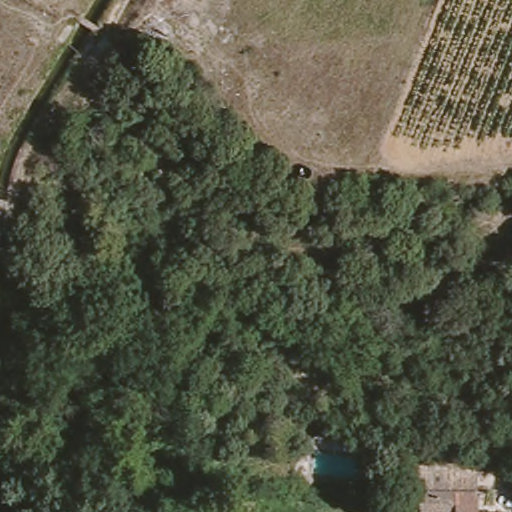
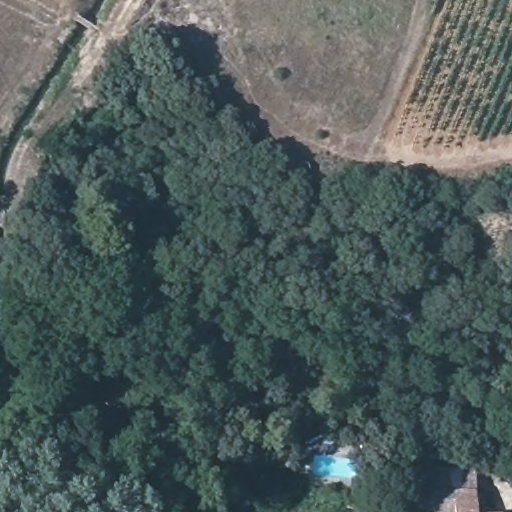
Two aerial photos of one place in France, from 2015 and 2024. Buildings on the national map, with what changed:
unchanged [(413,467),(483,462),(482,492),(475,499),(475,512),(415,512),(413,467)]

